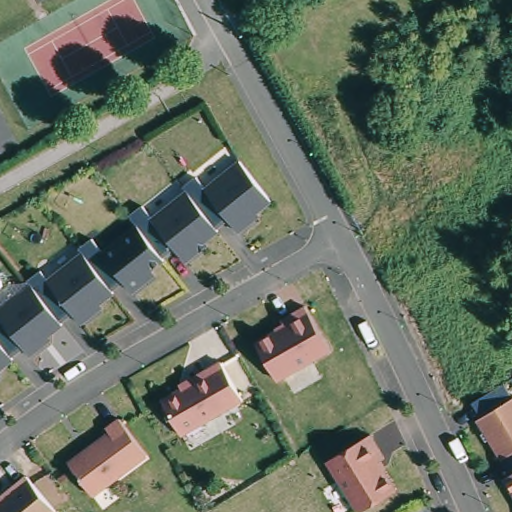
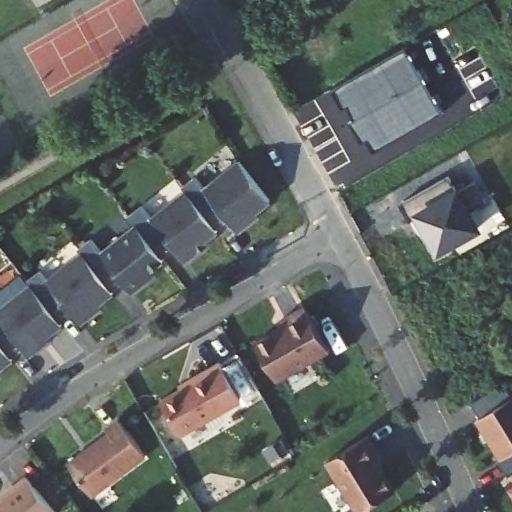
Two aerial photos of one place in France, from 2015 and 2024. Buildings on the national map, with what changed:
new [(442,111),(374,151),(367,137),(363,140),(351,121),(357,117),(349,103),(344,105),(335,87),(407,48),(442,111)]
unchanged [(251,219),(253,222),(238,233),(229,221),(217,230),(206,216),(198,206),(192,198),(186,192),(186,191),(183,187),(196,178),(206,190),(241,163),(245,169),(249,174),(252,177),(263,192),(272,202),(251,219)]
new [(446,182),(454,197),(472,187),(484,208),(467,218),(476,235),(437,257),(416,221),(408,226),(398,210),(446,182)]
unchanged [(198,248),(199,251),(185,262),(174,249),(163,258),(153,245),(145,236),(144,235),(139,228),(135,223),(132,220),(129,216),(142,207),(151,218),(186,192),(192,198),(198,206),(206,216),(217,230),(218,232),(198,248)]
unchanged [(143,277),(146,281),(133,292),(123,282),(112,291),(102,278),(96,271),(86,257),(83,254),(83,253),(79,249),(91,239),(99,250),(100,250),(102,249),(135,223),(139,228),(144,235),(145,236),(153,245),(163,258),(164,260),(143,277)]
unchanged [(40,271),(48,281),(83,253),(83,254),(86,257),(96,271),(102,278),(112,291),(113,293),(93,310),(94,312),(80,323),(73,313),(60,322),(45,303),(35,290),(31,285),(28,281),(40,271)]
unchanged [(35,290),(45,303),(60,322),(62,325),(41,341),(43,344),(29,356),(23,348),(11,357),(0,343),(0,309),(31,285),(35,290)]
unchanged [(330,352),(276,379),(258,342),(276,332),(274,328),(284,323),(286,324),(291,322),(288,315),(304,305),(330,352)]
unchanged [(13,359),(0,369),(0,343),(11,357),(13,359)]
unchanged [(219,362),(224,369),(242,359),(260,390),(242,400),(181,435),(161,400),(192,382),(189,378),(219,362)]
unchanged [(477,420),(481,417),(471,402),(486,393),(503,382),(512,397),(512,452),(501,459),(477,420)]
unchanged [(110,433),(107,430),(120,420),(146,457),(91,496),(68,463),(110,433)]
unchanged [(385,458),(381,462),(395,488),(359,512),(356,512),(326,461),(371,433),(385,458)]
new [(273,449),(279,460),(269,465),(263,454),(273,449)]
unchanged [(505,477),(508,476),(499,461),(501,459),(512,452),(512,489),(505,477)]
unchanged [(13,487),(26,476),(55,511),(54,512),(0,512),(0,502),(15,489),(13,487)]

